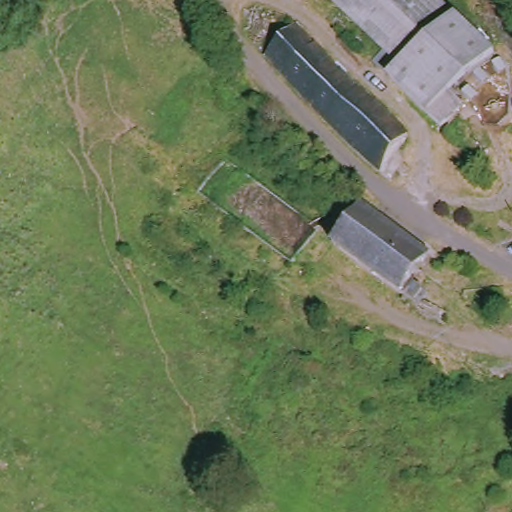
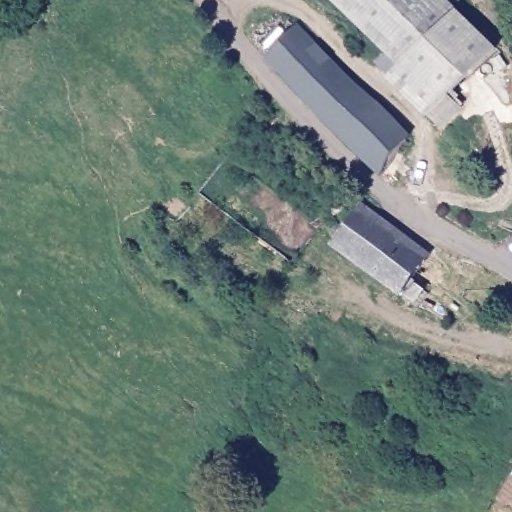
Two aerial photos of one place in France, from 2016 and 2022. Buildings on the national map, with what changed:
unchanged [(380,76),(390,66),(323,0),(435,0),(484,48),(439,93),(449,107),(430,126),(380,76)]
unchanged [(262,54),(292,21),(406,133),(379,172),(360,156),(262,54)]
unchanged [(404,296),(393,288),(327,240),(355,202),(420,253),(402,277),(413,284),(404,296)]

